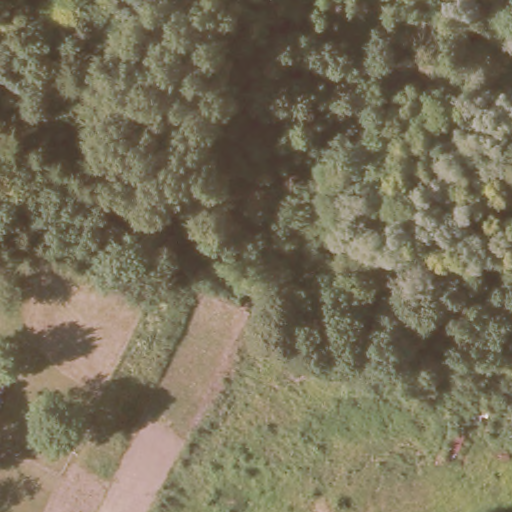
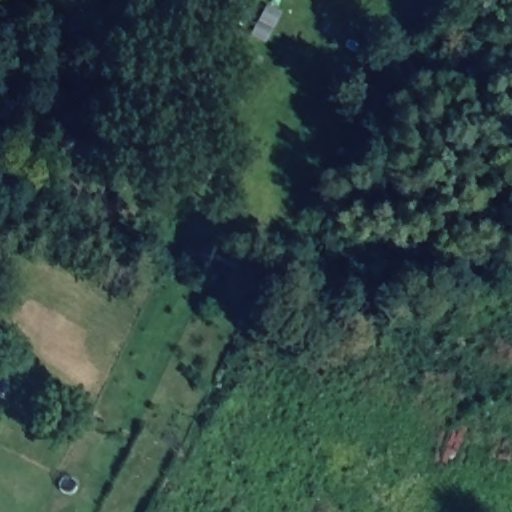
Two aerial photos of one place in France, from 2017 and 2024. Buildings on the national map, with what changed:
unchanged [(101,0),(102,2),(75,7),(75,0),(101,0)]

